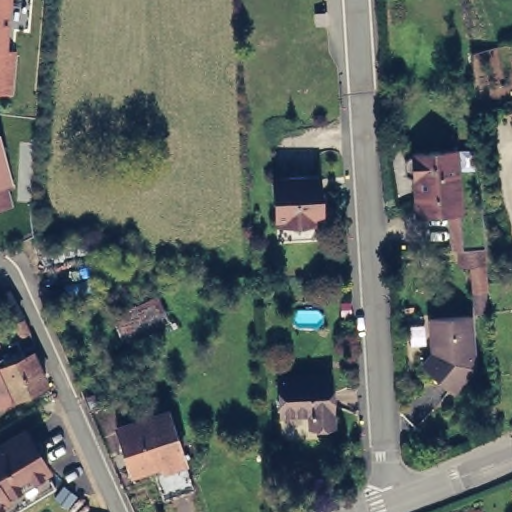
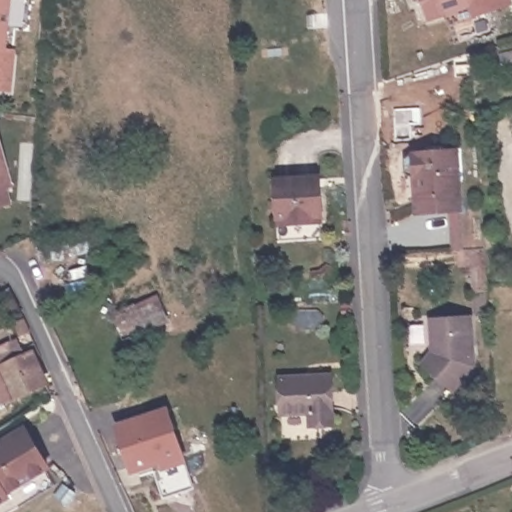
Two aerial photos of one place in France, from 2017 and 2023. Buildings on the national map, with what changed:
unchanged [(26,0),(23,27),(9,26),(6,49),(15,50),(12,93),(0,92),(0,0),(26,0)]
new [(470,9),(430,23),(422,3),(416,4),(415,0),(512,0),(512,6),(475,19),(470,9)]
unchanged [(14,187),(9,188),(15,206),(0,210),(0,136),(14,187)]
unchanged [(475,312),(473,291),(470,265),(460,266),(459,250),(454,250),(451,211),(417,213),(414,178),(405,173),(404,159),(413,153),(455,150),(459,209),(482,207),(485,248),(485,249),(485,264),(487,285),(487,289),(489,311),(475,312)]
unchanged [(317,218),(317,224),(289,226),(288,220),(280,221),(277,181),(314,179),(321,178),(322,189),(324,218),(317,218)]
unchanged [(44,276),(65,271),(68,290),(48,294),(37,297),(32,278),(44,276)]
unchanged [(94,297),(70,301),(68,290),(91,287),(94,297)]
unchanged [(119,317),(162,298),(172,322),(129,340),(119,317)]
unchanged [(432,355),(430,321),(470,318),(474,367),(452,391),(423,365),(432,355)]
unchanged [(24,355),(14,331),(26,325),(32,340),(37,349),(24,355)]
unchanged [(116,359),(126,354),(132,372),(122,375),(116,359)]
unchanged [(0,395),(0,373),(32,358),(46,389),(13,404),(5,407),(0,395)]
unchanged [(310,428),(310,423),(309,414),(280,415),(279,379),(330,377),(333,422),(333,427),(310,428)]
unchanged [(152,460),(130,468),(117,422),(167,406),(192,483),(164,493),(152,460)]
unchanged [(0,505),(0,447),(27,431),(49,470),(30,482),(29,480),(8,492),(12,498),(0,505)]

